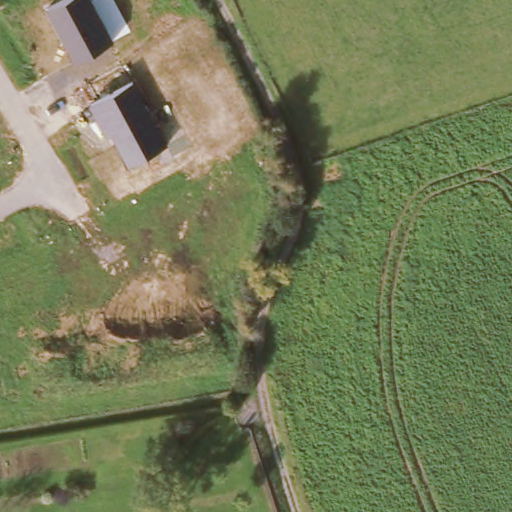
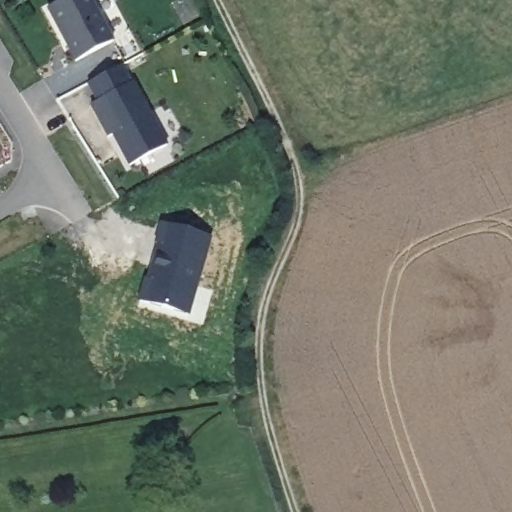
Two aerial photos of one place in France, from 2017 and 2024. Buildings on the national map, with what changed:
unchanged [(75,60),(46,9),(62,0),(94,0),(115,39),(75,60)]
unchanged [(112,134),(105,137),(90,104),(135,81),(167,144),(127,165),(112,134)]
new [(212,238),(188,316),(137,303),(143,278),(145,279),(155,246),(152,245),(158,223),(212,238)]

